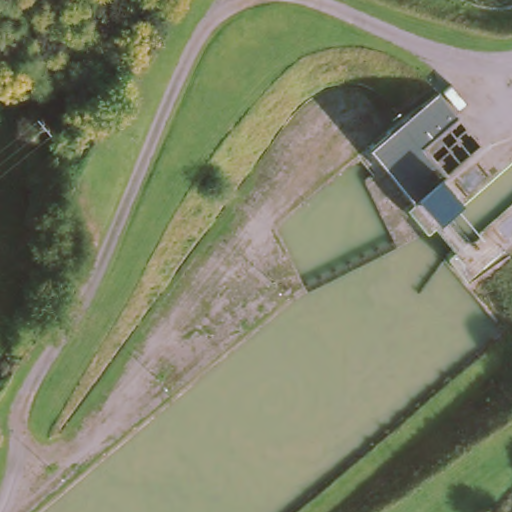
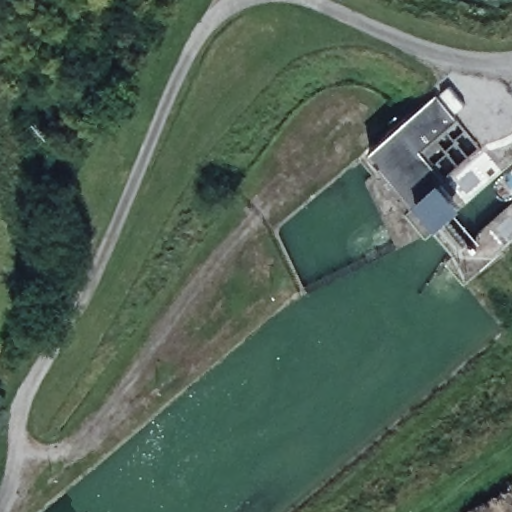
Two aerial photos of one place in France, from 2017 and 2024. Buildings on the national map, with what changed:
unchanged [(366,148),(436,91),(477,144),(440,180),(455,198),(427,220),(366,148)]

